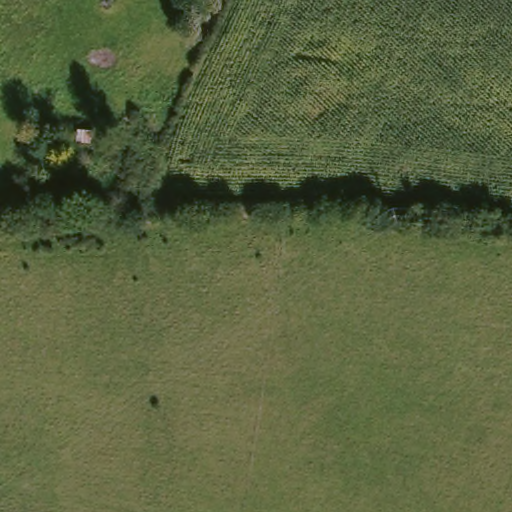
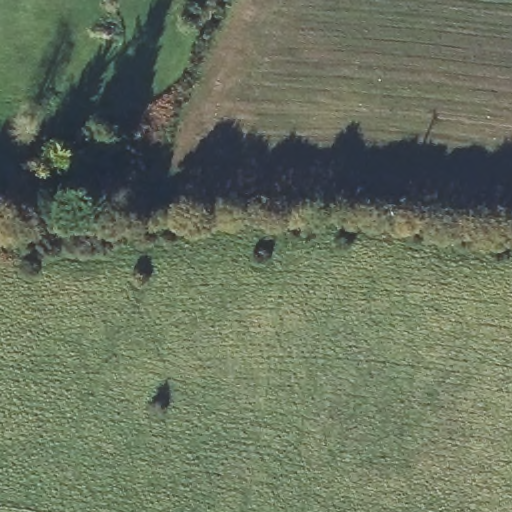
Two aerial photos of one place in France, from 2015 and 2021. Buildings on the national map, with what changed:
unchanged [(91,133),(91,145),(74,143),(75,132),(91,133)]

